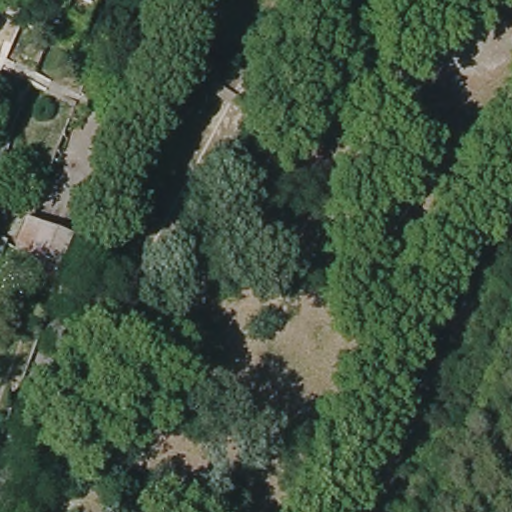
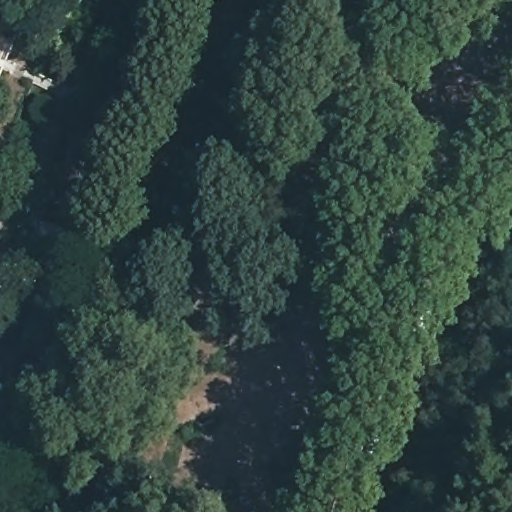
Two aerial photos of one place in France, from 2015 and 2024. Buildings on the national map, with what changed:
unchanged [(52,15),(59,0),(102,0),(87,32),(52,15)]
unchanged [(31,212),(59,224),(61,219),(78,226),(65,257),(63,262),(41,250),(20,238),(31,212)]
unchanged [(41,250),(62,262),(63,262),(65,264),(64,268),(58,287),(9,266),(20,238),(41,250)]

